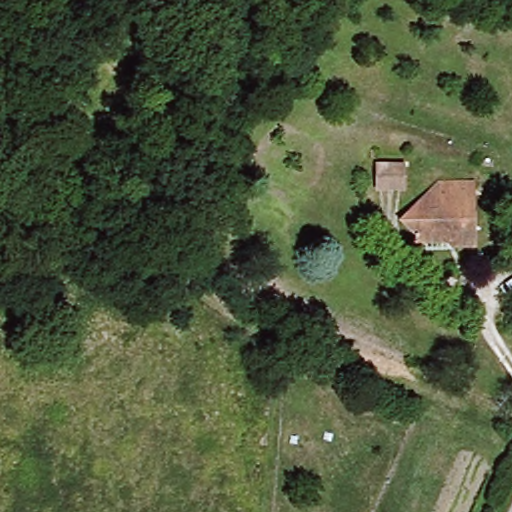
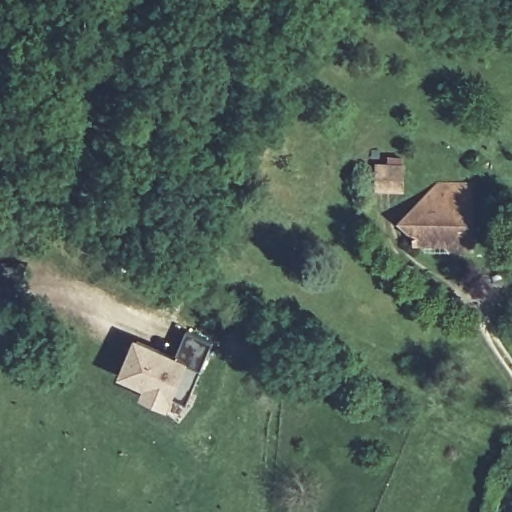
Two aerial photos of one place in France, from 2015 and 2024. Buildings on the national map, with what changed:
unchanged [(402,190),(371,191),(370,165),(400,164),(402,190)]
unchanged [(425,255),(420,239),(407,230),(432,182),(471,180),(476,250),(457,251),(452,259),(432,260),(425,255)]
new [(177,397),(112,370),(126,336),(191,363),(177,397)]
new [(157,399),(134,390),(137,380),(161,390),(157,399)]

